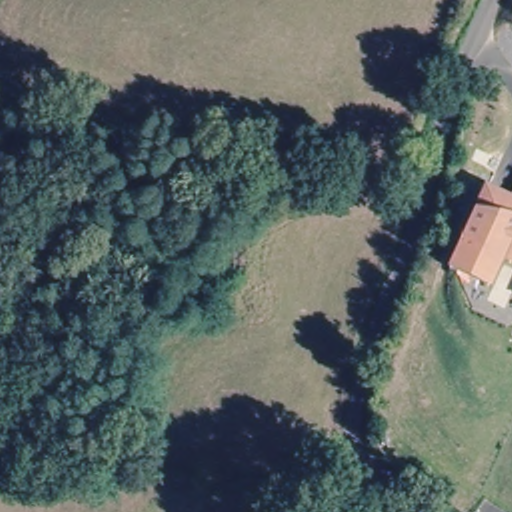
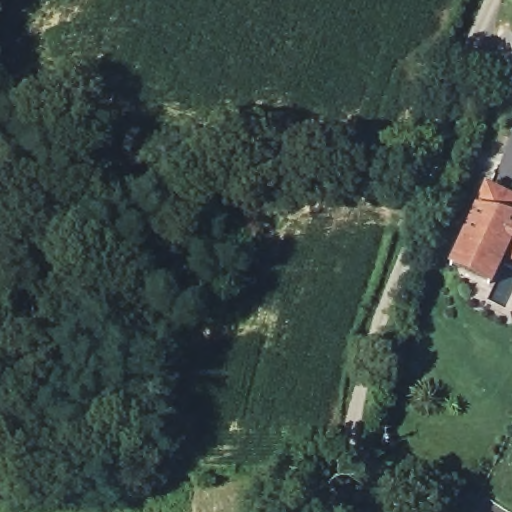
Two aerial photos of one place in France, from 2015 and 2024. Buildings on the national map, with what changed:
unchanged [(486,190),(512,201),(512,219),(476,212),(486,190)]
unchanged [(450,269),(452,264),(476,212),(512,219),(512,259),(503,255),(491,282),(488,287),(450,269)]

